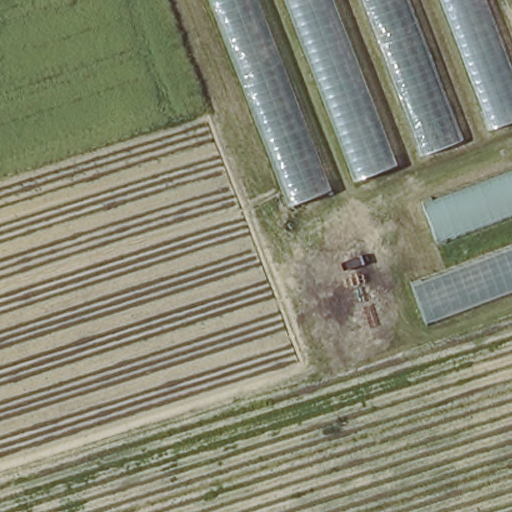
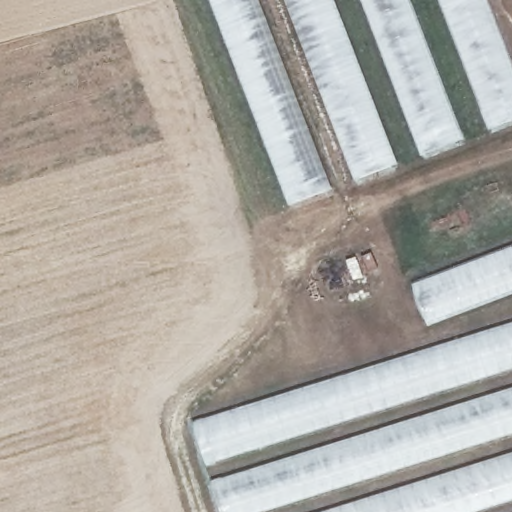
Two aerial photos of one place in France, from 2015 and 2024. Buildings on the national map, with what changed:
unchanged [(280,207),(198,0),(252,0),(328,188),(280,207)]
unchanged [(349,185),(281,0),(330,0),(390,158),(349,185)]
unchanged [(421,154),(364,0),(411,0),(463,144),(421,154)]
unchanged [(512,63),(512,123),(491,132),(441,0),(487,0),(512,63)]
demolished [(512,214),(433,243),(418,202),(512,170),(512,214)]
unchanged [(512,247),(512,291),(426,323),(413,285),(512,247)]
new [(512,324),(512,512),(222,512),(193,423),(512,324)]

